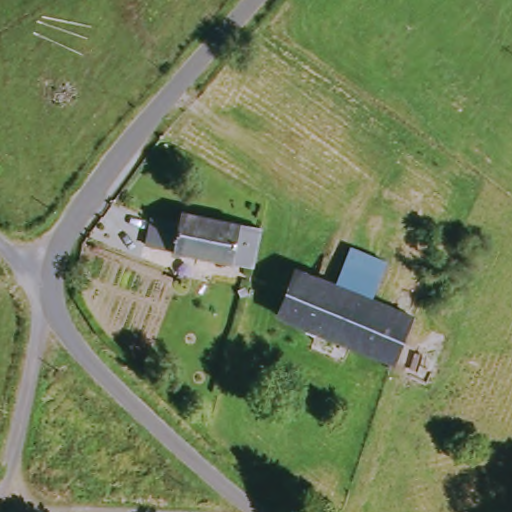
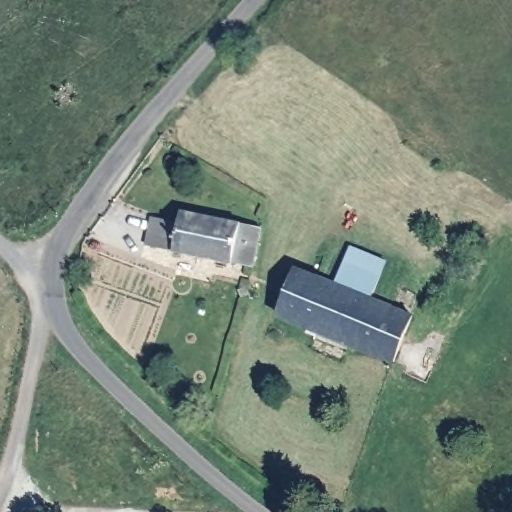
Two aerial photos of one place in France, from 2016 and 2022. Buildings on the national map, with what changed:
unchanged [(150,247),(155,219),(185,222),(187,212),(265,228),(255,267),(150,247)]
unchanged [(281,314),(300,269),(340,284),(354,248),(390,262),(376,299),(416,317),(398,362),(281,314)]

